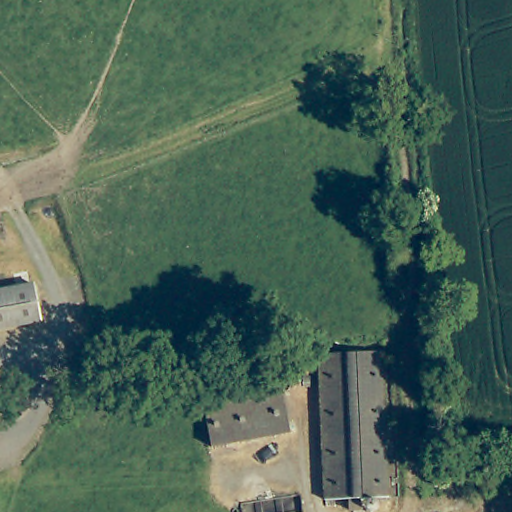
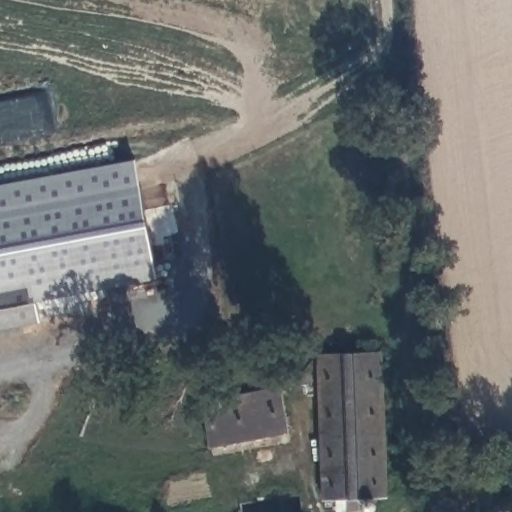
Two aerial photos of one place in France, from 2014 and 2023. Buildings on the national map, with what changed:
new [(157,279),(40,300),(37,282),(0,288),(0,184),(137,160),(157,279)]
unchanged [(43,320),(0,327),(0,288),(37,282),(43,320)]
unchanged [(318,424),(311,349),(376,343),(389,497),(361,500),(362,511),(350,512),(348,502),(326,503),(318,424)]
unchanged [(219,397),(282,387),(291,430),(247,437),(207,443),(199,399),(219,397)]

